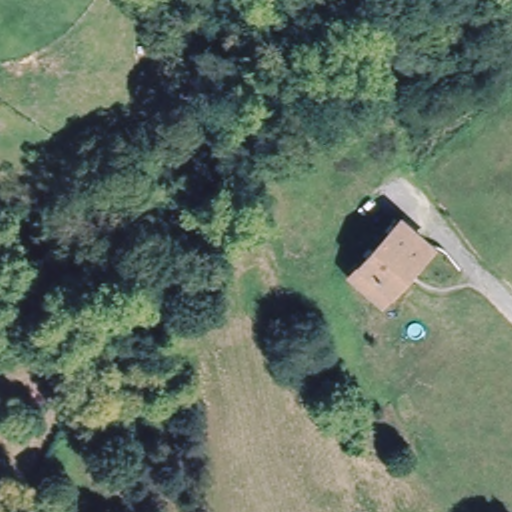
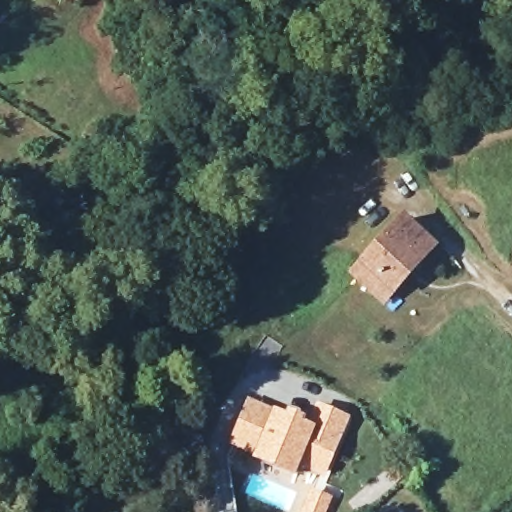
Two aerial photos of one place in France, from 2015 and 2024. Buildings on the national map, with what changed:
unchanged [(354,272),(364,261),(404,217),(434,245),(394,288),(384,299),(354,272)]
new [(235,438),(236,439),(251,406),(249,405),(250,403),(288,420),(289,416),(301,422),(300,426),(310,430),(319,408),(346,420),(323,472),(297,460),(292,470),(259,455),(260,452),(234,440),(235,438)]
new [(313,492),(329,499),(324,512),(304,512),(313,492)]

